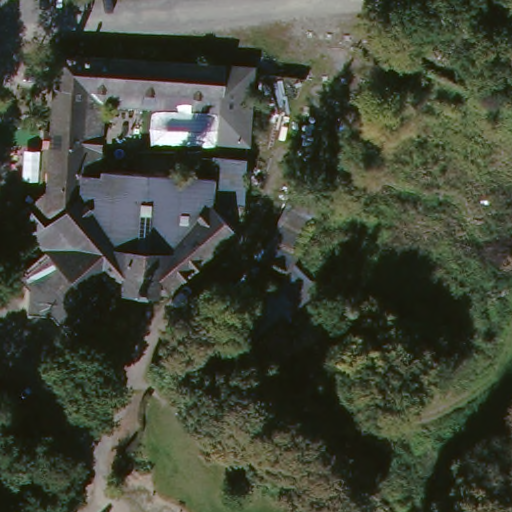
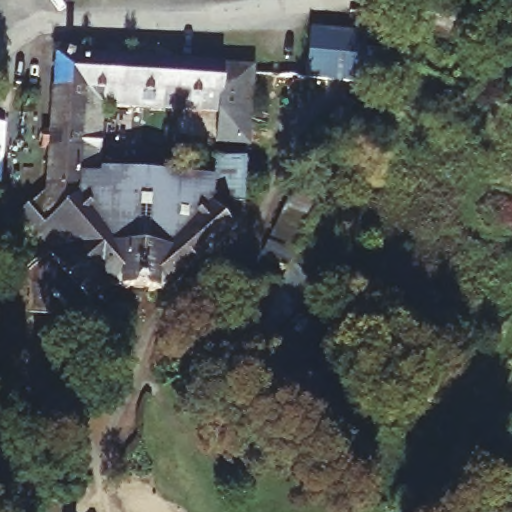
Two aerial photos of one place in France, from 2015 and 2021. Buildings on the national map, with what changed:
new [(312,29),(366,34),(361,84),(305,79),(312,29)]
unchanged [(62,339),(54,329),(51,333),(32,313),(38,299),(28,289),(41,277),(9,244),(23,230),(45,207),(46,156),(29,140),(47,124),(48,55),(69,56),(155,62),(162,62),(216,66),(254,68),(247,146),(194,141),(196,118),(170,115),(137,114),(100,112),(97,180),(125,181),(179,184),(217,186),(218,161),(244,163),(236,232),(164,303),(104,300),(87,316),(95,323),(78,339),(73,344),(65,336),(62,339)]
unchanged [(263,279),(275,260),(277,262),(300,223),(291,217),(301,202),(320,213),(311,230),(289,269),(279,288),(263,279)]
unchanged [(240,347),(230,337),(278,289),(294,298),(244,351),(240,347)]

